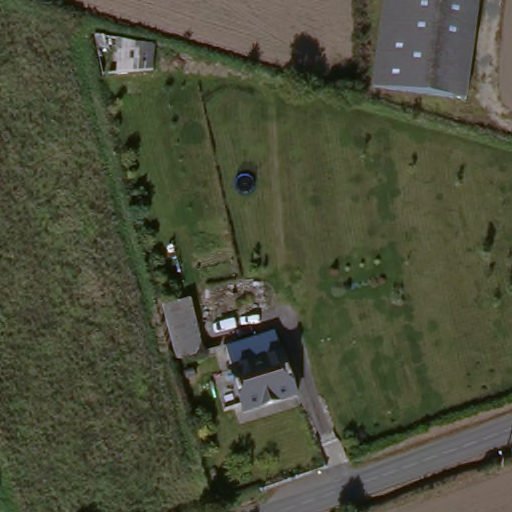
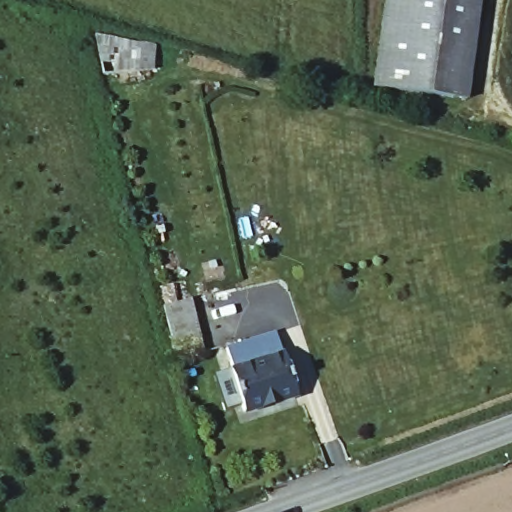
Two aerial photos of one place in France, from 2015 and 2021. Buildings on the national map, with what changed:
unchanged [(467,99),(374,87),(387,0),(479,0),(467,99)]
unchanged [(119,41),(154,47),(149,78),(114,71),(119,41)]
unchanged [(179,362),(174,346),(163,306),(194,298),(207,336),(212,351),(179,362)]
unchanged [(270,335),(276,353),(284,352),(298,398),(242,414),(224,349),(270,335)]

